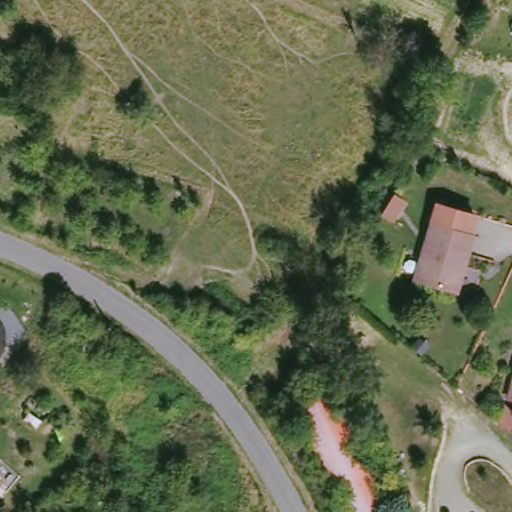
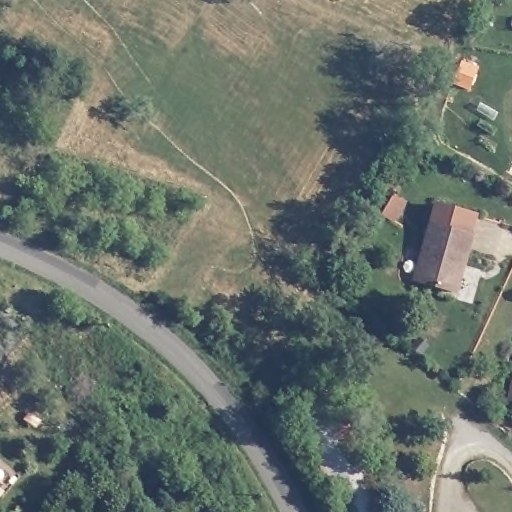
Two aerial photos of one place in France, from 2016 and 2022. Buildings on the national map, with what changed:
unchanged [(469,256),(465,255),(457,281),(420,270),(435,213),(477,225),(469,256)]
unchanged [(384,512),(343,512),(295,402),(330,387),(384,512)]
unchanged [(512,388),(512,400),(510,400),(512,388)]
unchanged [(505,405),(512,411),(512,434),(495,419),(505,405)]

